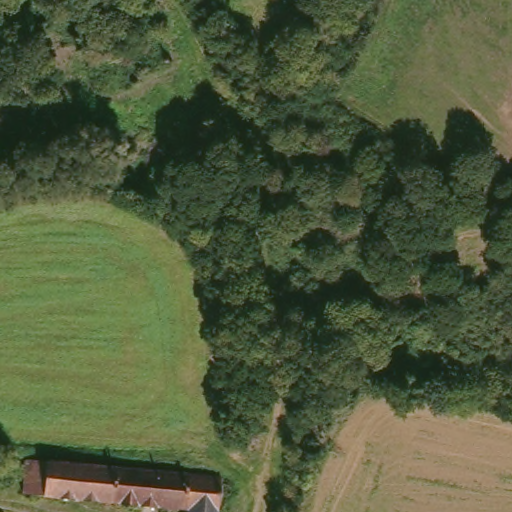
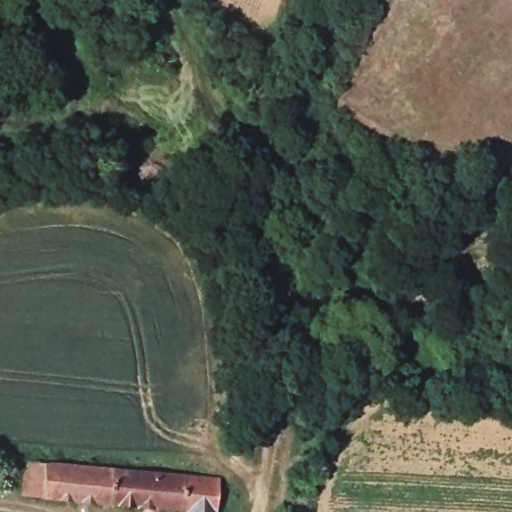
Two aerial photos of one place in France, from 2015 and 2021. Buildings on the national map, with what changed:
unchanged [(15,499),(18,466),(164,475),(220,479),(218,512),(165,512),(15,499)]

